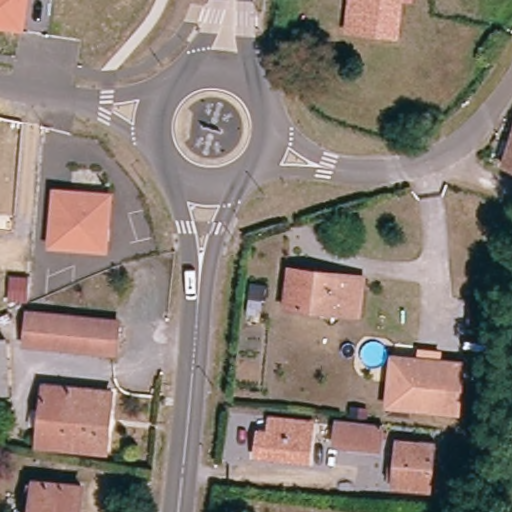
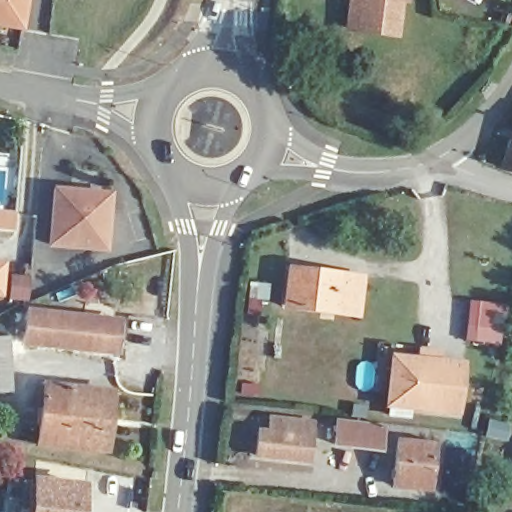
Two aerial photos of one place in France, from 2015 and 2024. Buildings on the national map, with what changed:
unchanged [(24,32),(0,28),(0,0),(29,0),(24,32)]
unchanged [(391,36),(362,32),(365,0),(395,0),(391,36)]
new [(512,131),(512,172),(499,169),(512,131)]
demolished [(512,148),(512,180),(502,176),(512,148)]
unchanged [(50,246),(54,191),(101,195),(109,196),(107,211),(104,251),(50,246)]
new [(7,262),(2,297),(0,297),(0,261),(7,262)]
unchanged [(285,308),(290,269),(365,278),(360,317),(285,308)]
new [(469,300),(506,305),(501,346),(465,340),(469,300)]
unchanged [(26,350),(29,317),(119,326),(116,359),(26,350)]
unchanged [(7,340),(10,392),(0,393),(0,340),(7,340)]
unchanged [(383,420),(384,410),(389,365),(412,367),(412,368),(457,373),(452,418),(406,412),(405,423),(383,420)]
unchanged [(106,457),(39,450),(45,391),(112,398),(106,457)]
unchanged [(362,420),(348,418),(349,410),(362,411),(362,420)]
unchanged [(375,456),(331,450),(333,425),(378,431),(375,456)]
unchanged [(257,461),(260,438),(272,440),(273,426),(311,430),(307,466),(257,461)]
unchanged [(424,496),(390,492),(394,448),(415,450),(416,447),(428,448),(424,496)]
unchanged [(84,492),(81,512),(35,512),(38,487),(84,492)]

